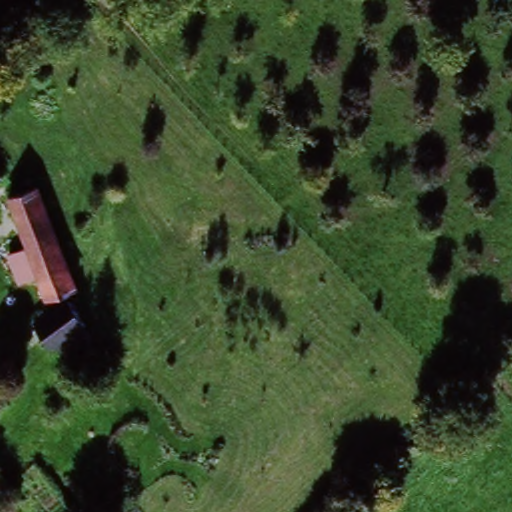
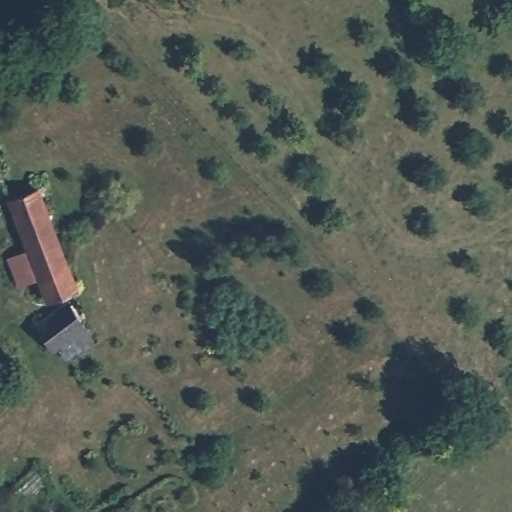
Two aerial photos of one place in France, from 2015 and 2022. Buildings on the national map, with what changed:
unchanged [(51,298),(5,204),(32,192),(80,285),(51,298)]
unchanged [(91,333),(60,350),(45,325),(77,306),(91,333)]

